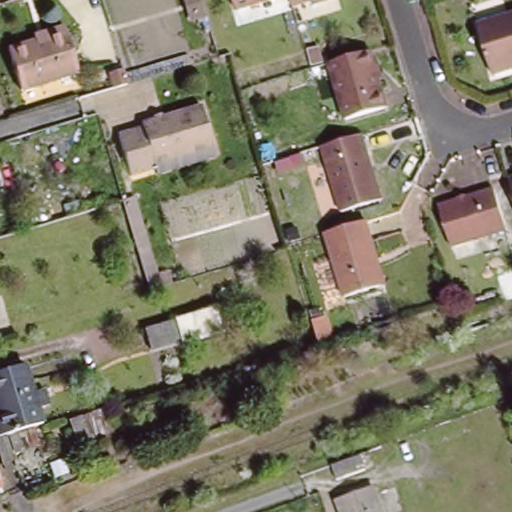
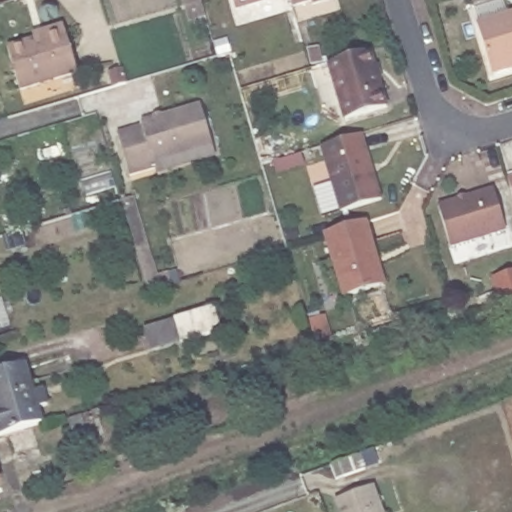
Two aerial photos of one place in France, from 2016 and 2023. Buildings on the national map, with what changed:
unchanged [(235,5),(234,0),(251,0),(235,5)]
unchanged [(292,2),(292,0),(301,0),(292,2)]
unchanged [(482,75),(467,25),(512,12),(512,66),(482,75)]
unchanged [(19,94),(7,55),(35,46),(32,41),(42,38),(63,32),(65,37),(76,76),(19,94)]
unchanged [(370,49),(387,104),(345,116),(329,60),(370,49)]
unchanged [(214,145),(155,164),(155,167),(132,175),(121,142),(119,136),(145,128),(144,124),(201,106),(205,117),(214,145)]
unchanged [(345,135),(358,131),(377,197),(337,209),(317,144),(345,135)]
unchanged [(512,176),(512,208),(503,179),(512,176)]
unchanged [(435,201),(489,185),(500,225),(446,241),(435,201)]
unchanged [(380,284),(345,295),(325,230),(365,219),(376,255),(385,282),(380,284)]
unchanged [(175,318),(182,340),(152,350),(145,327),(175,318)]
unchanged [(34,392),(44,389),(49,405),(39,408),(43,424),(7,435),(3,435),(0,436),(0,372),(26,365),(34,392)]
unchanged [(357,455),(361,466),(334,476),(330,465),(357,455)]
unchanged [(341,512),(337,501),(372,487),(381,512),(341,512)]

